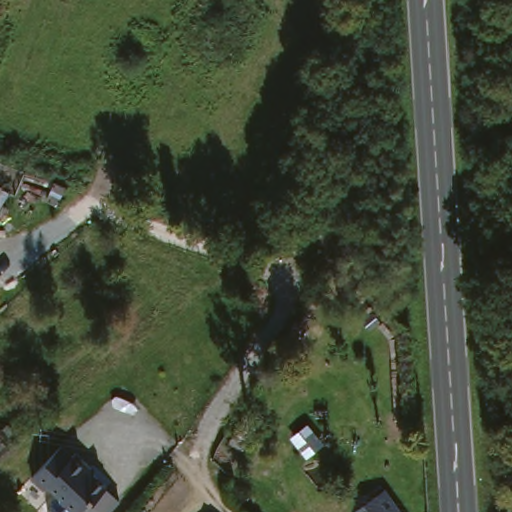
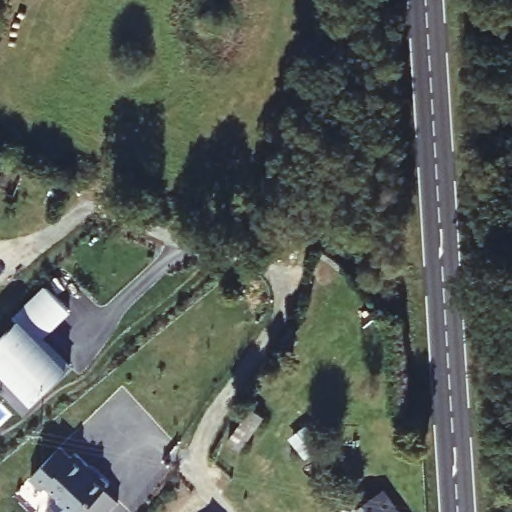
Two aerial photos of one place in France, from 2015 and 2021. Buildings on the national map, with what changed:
unchanged [(0,192),(0,186),(2,187),(0,192)]
new [(13,322),(44,291),(67,313),(36,343),(44,351),(47,348),(69,370),(34,405),(0,372),(0,342),(16,325),(13,322)]
unchanged [(249,444),(261,452),(240,486),(237,484),(228,479),(232,472),(249,444)]
unchanged [(79,482),(92,495),(89,497),(104,512),(41,512),(34,505),(64,475),(75,486),(79,482)]
unchanged [(361,502),(371,495),(376,500),(384,512),(359,512),(365,507),(361,502)]

